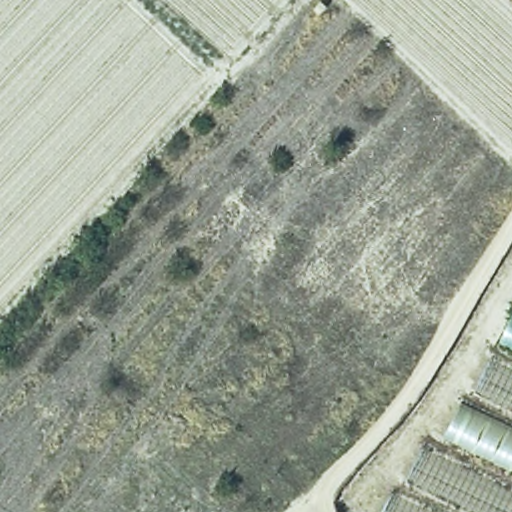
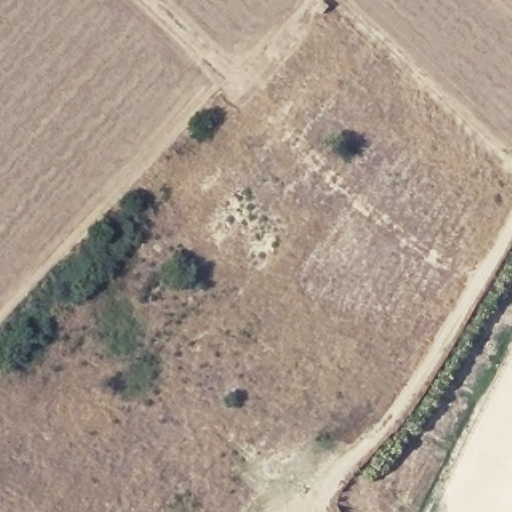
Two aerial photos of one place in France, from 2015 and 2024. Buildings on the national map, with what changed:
unchanged [(324,21),(310,9),(318,0),(324,0),(333,7),(324,21)]
demolished [(389,496),(399,501),(423,450),(433,456),(457,408),(466,412),(512,316),(512,512),(382,512),(389,496)]

